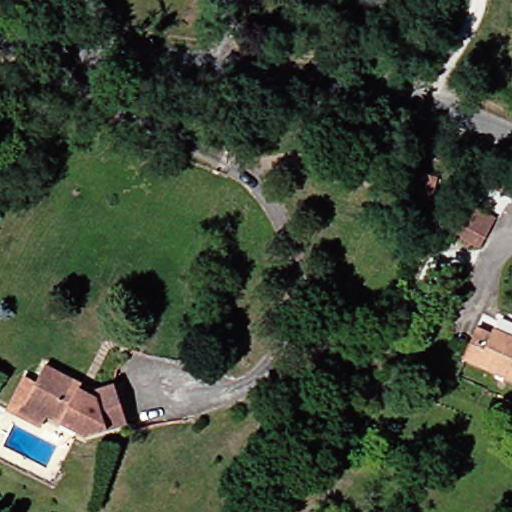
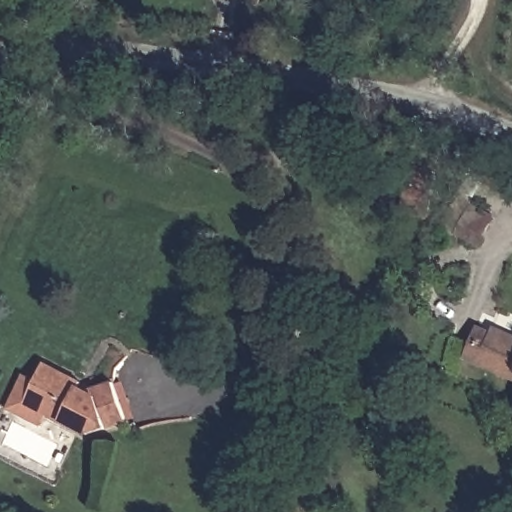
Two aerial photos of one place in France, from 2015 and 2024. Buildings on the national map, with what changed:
unchanged [(445,240),(457,220),(464,208),(488,222),(481,234),(469,254),(445,240)]
unchanged [(469,331),(482,338),(487,328),(509,340),(512,341),(512,387),(455,357),(469,331)]
unchanged [(73,383),(80,397),(110,391),(118,430),(78,439),(41,415),(33,426),(0,406),(19,374),(31,381),(41,364),(73,383)]

